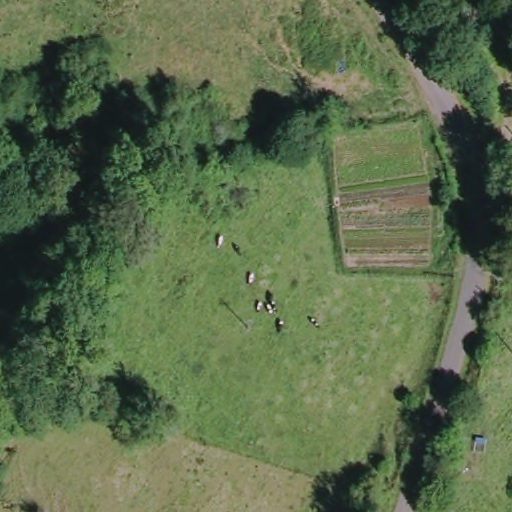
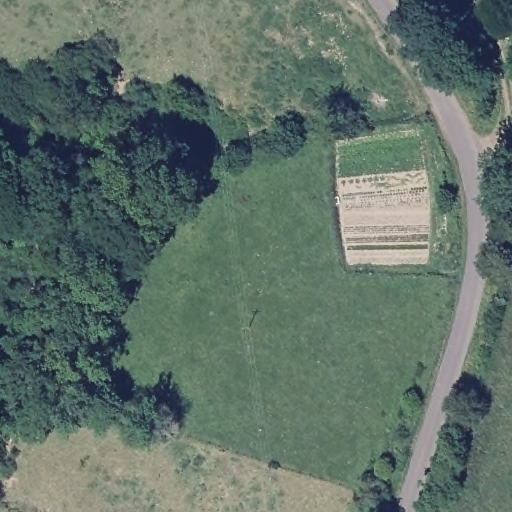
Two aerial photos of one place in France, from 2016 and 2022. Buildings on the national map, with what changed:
unchanged [(472,30),(485,53),(468,62),(454,42),(472,30)]

